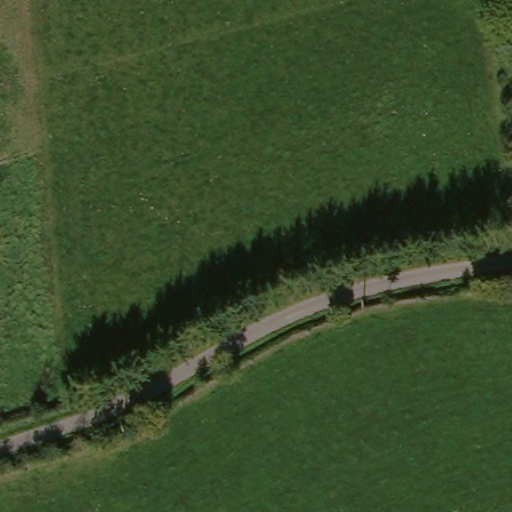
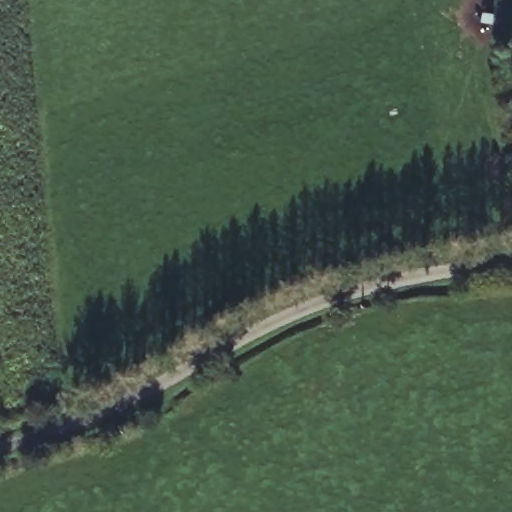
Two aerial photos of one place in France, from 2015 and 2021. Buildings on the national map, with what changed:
[]

